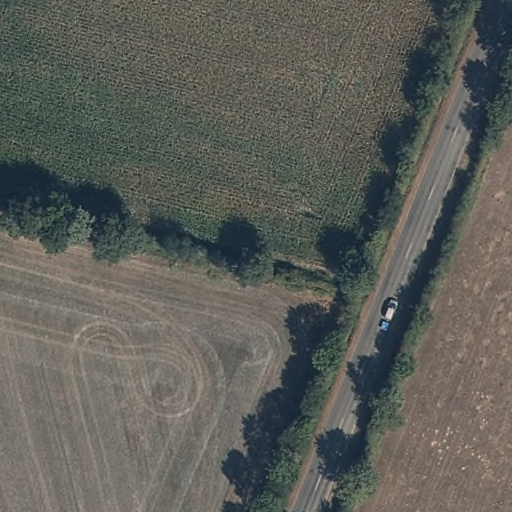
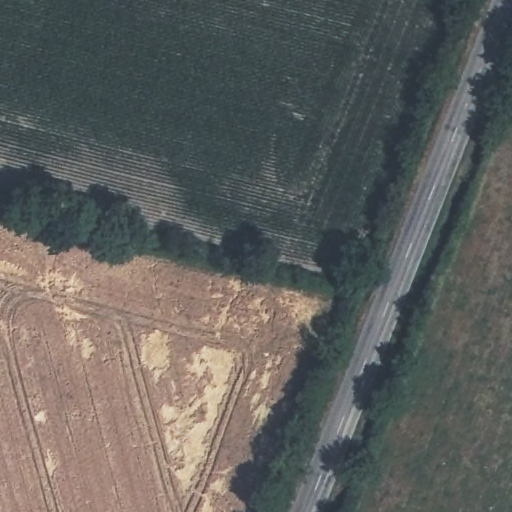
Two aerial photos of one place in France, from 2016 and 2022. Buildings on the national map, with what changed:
[]

